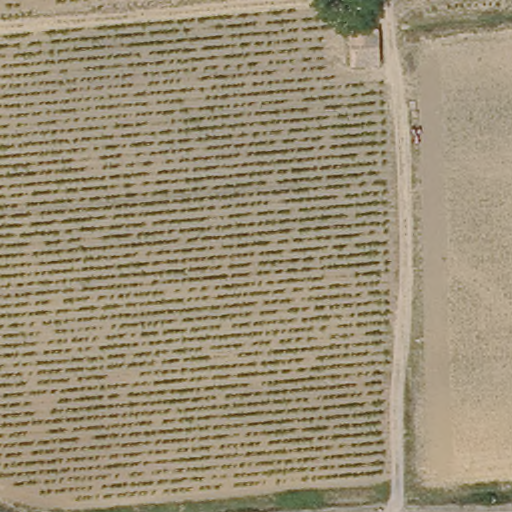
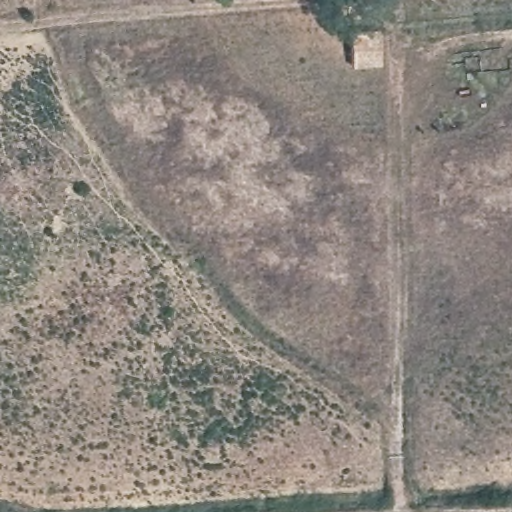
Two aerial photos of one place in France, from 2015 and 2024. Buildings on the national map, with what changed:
unchanged [(376,24),(380,59),(350,60),(347,25),(376,24)]

